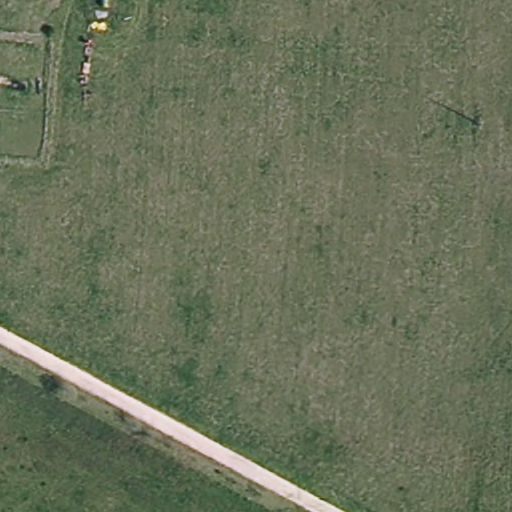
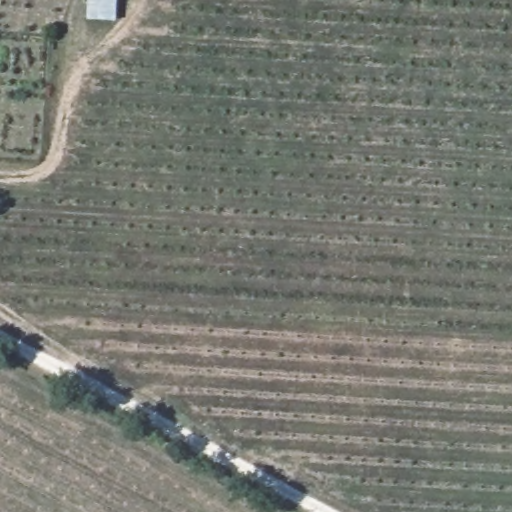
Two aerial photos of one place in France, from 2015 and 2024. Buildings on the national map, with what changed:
new [(87,20),(88,0),(117,0),(116,21),(87,20)]

